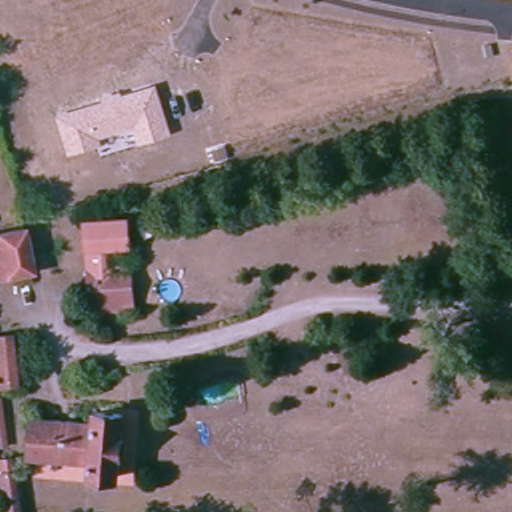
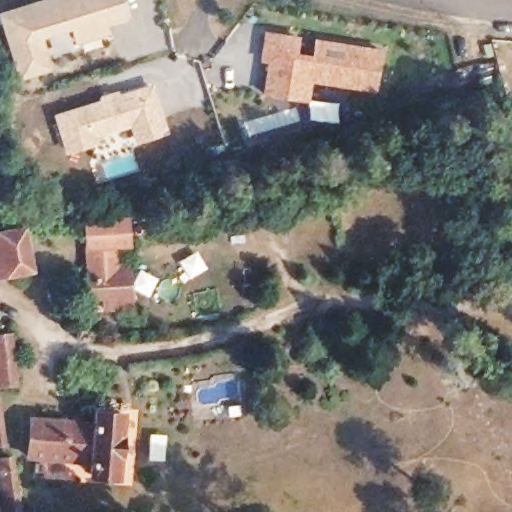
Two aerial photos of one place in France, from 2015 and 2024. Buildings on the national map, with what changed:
new [(107,24),(111,34),(76,45),(72,31),(45,39),(55,71),(19,80),(0,14),(0,12),(38,0),(127,0),(133,17),(107,24)]
new [(300,36),(300,52),(313,55),(315,37),(383,49),(378,92),(313,81),(310,101),(262,94),(268,62),(262,61),(266,30),(300,36)]
unchanged [(170,136),(136,147),(130,129),(98,139),(99,145),(66,155),(55,115),(100,102),(100,97),(120,92),(122,96),(154,85),(170,136)]
unchanged [(109,297),(95,298),(89,222),(129,218),(130,242),(117,243),(119,265),(133,263),(135,292),(135,294),(137,306),(110,309),(109,297)]
unchanged [(27,269),(0,275),(0,230),(18,226),(27,269)]
unchanged [(7,382),(0,384),(0,335),(7,382)]
unchanged [(111,477),(81,477),(82,462),(18,461),(21,425),(83,425),(84,415),(112,415),(111,477)]
unchanged [(16,512),(0,512),(0,465),(8,463),(16,512)]

